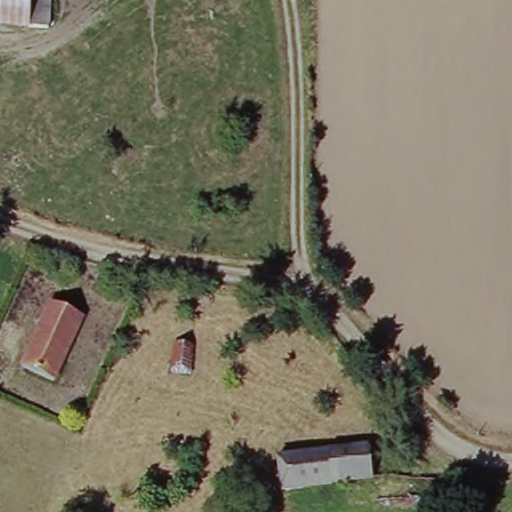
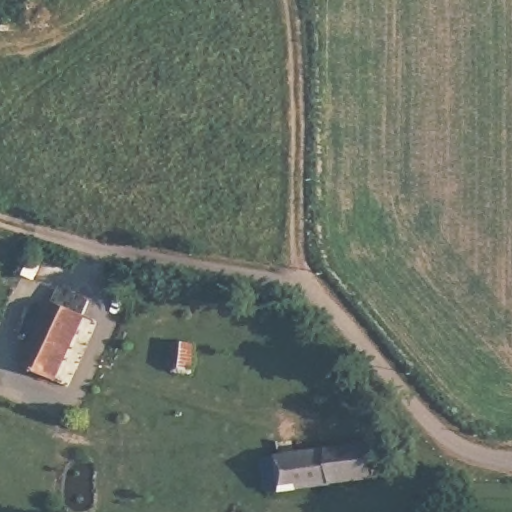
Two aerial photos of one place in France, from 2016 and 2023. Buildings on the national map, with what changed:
demolished [(50,27),(0,26),(0,0),(50,0),(50,27)]
unchanged [(52,386),(20,371),(50,305),(82,320),(55,385),(52,386)]
unchanged [(191,377),(170,376),(171,348),(191,349),(191,377)]
unchanged [(366,450),(371,483),(278,495),(274,462),(366,450)]

